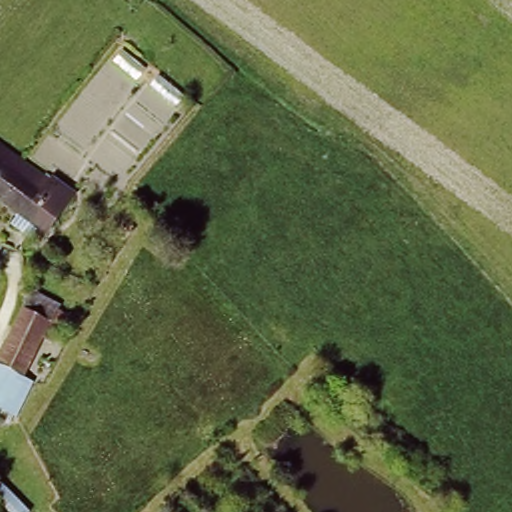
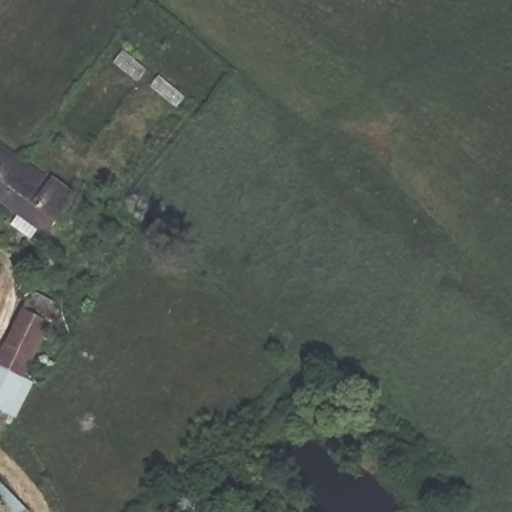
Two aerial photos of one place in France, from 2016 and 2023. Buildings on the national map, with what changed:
unchanged [(0,185),(0,142),(22,158),(0,185)]
unchanged [(38,245),(11,225),(20,214),(0,200),(0,185),(22,158),(74,197),(38,245)]
unchanged [(63,307),(50,328),(42,325),(14,375),(0,367),(0,338),(29,287),(63,307)]
unchanged [(0,401),(0,367),(14,375),(0,401)]
unchanged [(27,512),(0,512),(0,482),(30,509),(27,512)]

